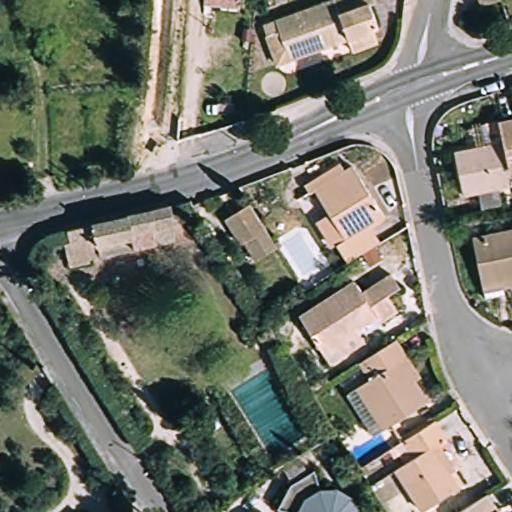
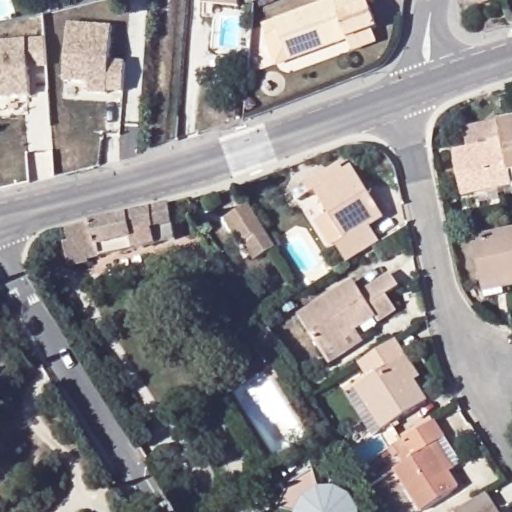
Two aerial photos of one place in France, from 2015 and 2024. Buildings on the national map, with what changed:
unchanged [(239,0),(238,7),(203,4),(203,0),(239,0)]
unchanged [(341,60),(337,48),(278,70),(264,32),(322,11),(321,8),(343,0),(358,0),(363,12),(357,15),(365,38),(360,40),(364,51),(341,60)]
unchanged [(478,0),(500,0),(480,6),(478,0)]
new [(68,25),(112,28),(109,62),(124,64),(122,94),(107,92),(107,96),(88,95),(89,85),(64,83),(68,25)]
new [(44,39),(46,66),(27,67),(30,96),(0,98),(0,42),(44,39)]
unchanged [(454,154),(502,142),(499,124),(512,121),(512,183),(462,194),(454,154)]
unchanged [(321,223),(333,215),(319,192),(314,195),(309,187),(332,174),(337,180),(357,169),(387,217),(375,226),(386,244),(352,264),(340,246),(336,249),(321,223)]
unchanged [(257,259),(248,244),(241,245),(225,219),(248,205),(276,247),(257,259)]
unchanged [(130,216),(170,206),(172,226),(174,240),(154,245),(98,257),(97,254),(87,257),(89,262),(69,265),(65,245),(71,244),(67,233),(130,217),(130,216)]
unchanged [(472,243),(512,235),(512,291),(483,297),(481,287),(472,243)]
unchanged [(324,363),(318,354),(295,319),(350,285),(358,295),(386,276),(394,288),(383,296),(391,310),(374,321),(370,317),(351,330),(353,332),(359,340),(324,363)]
unchanged [(268,353),(257,337),(264,332),(274,349),(268,353)]
unchanged [(404,363),(417,382),(410,386),(425,408),(385,434),(358,393),(371,386),(360,367),(394,346),(404,363)]
unchanged [(433,443),(449,468),(443,473),(452,490),(418,512),(392,470),(409,458),(399,441),(430,421),(440,437),(433,443)]
unchanged [(319,495),(334,494),(346,500),(353,512),(283,512),(275,510),(289,485),(313,469),(319,495)]
unchanged [(486,490),(500,512),(451,512),(486,490)]
unchanged [(78,512),(76,512),(77,511),(78,512)]

